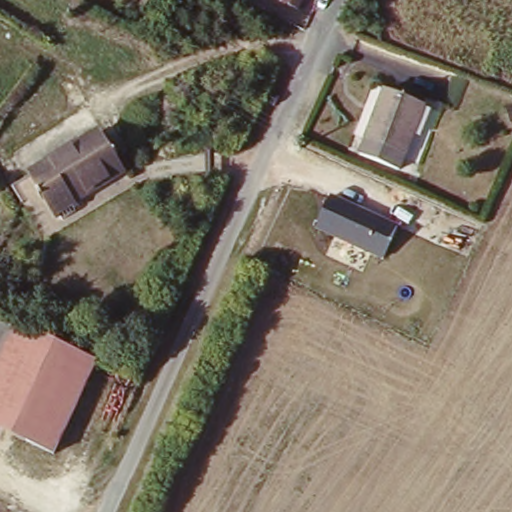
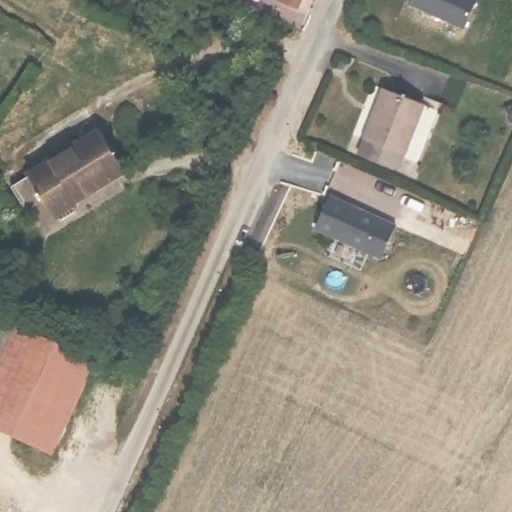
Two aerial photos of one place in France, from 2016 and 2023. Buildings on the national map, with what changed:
unchanged [(278,2),(279,0),(301,0),(297,10),(278,2)]
new [(478,0),(480,1),(464,34),(410,11),(414,0),(478,0)]
unchanged [(427,111),(405,160),(397,175),(360,157),(366,142),(390,94),(427,111)]
unchanged [(50,165),(46,161),(74,144),(77,149),(105,132),(129,171),(79,202),(81,207),(77,210),(79,214),(65,221),(62,218),(59,220),(47,200),(42,203),(38,195),(25,204),(15,187),(50,165)]
unchanged [(397,224),(381,259),(317,230),(330,197),(397,224)]
unchanged [(52,458),(0,436),(0,323),(95,366),(52,458)]

